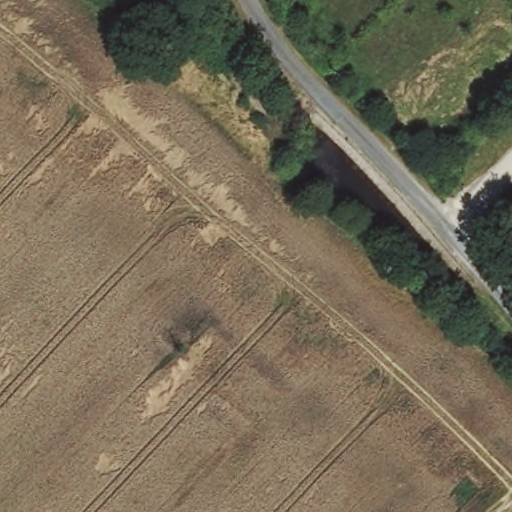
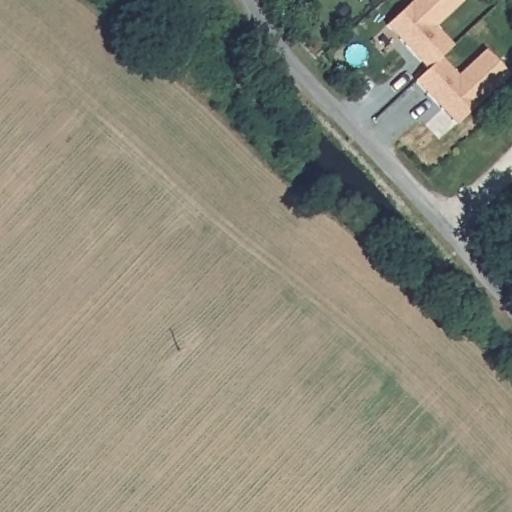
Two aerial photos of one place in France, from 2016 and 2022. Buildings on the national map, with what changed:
new [(436,26),(453,46),(440,57),(458,75),(484,50),(509,77),(455,126),(414,81),(427,70),(386,25),(413,0),(462,0),(464,1),(436,26)]

